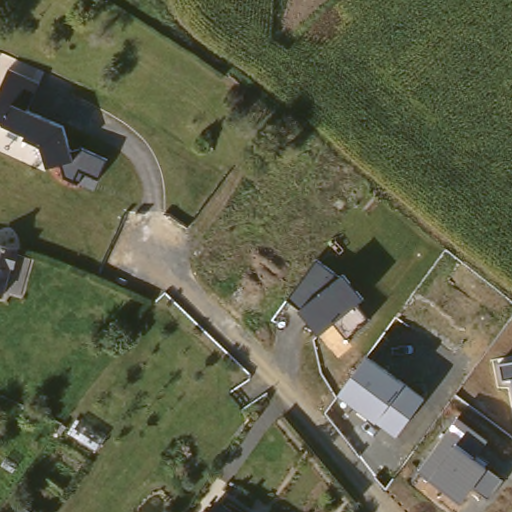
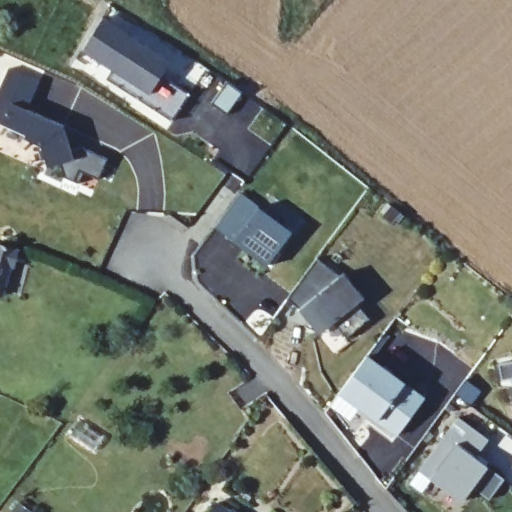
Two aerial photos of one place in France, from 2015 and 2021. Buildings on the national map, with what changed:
unchanged [(61,164),(46,167),(40,146),(24,140),(26,135),(2,125),(0,124),(0,82),(5,69),(39,82),(25,110),(64,127),(71,149),(81,147),(108,160),(99,177),(82,171),(76,184),(65,179),(61,164)]
new [(239,196),(256,208),(291,234),(267,267),(232,241),(215,229),(239,196)]
unchanged [(11,254),(10,256),(5,268),(2,267),(0,274),(0,249),(11,254)]
unchanged [(334,323),(320,333),(300,309),(287,299),(316,260),(340,276),(342,274),(364,298),(357,305),(369,319),(346,339),(334,323)]
unchanged [(396,437),(376,422),(338,394),(366,356),(404,384),(425,398),(396,437)]
unchanged [(498,364),(512,362),(512,385),(511,380),(501,382),(498,364)]
unchanged [(474,487),(461,503),(430,480),(419,471),(456,416),(489,438),(475,457),(503,478),(489,497),(474,487)]
unchanged [(226,499),(242,512),(215,512),(226,499)]

